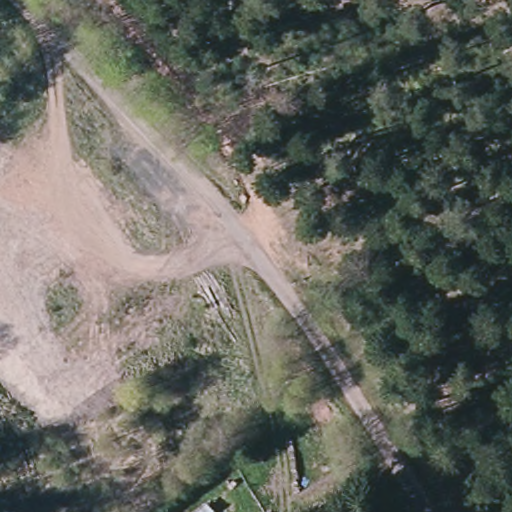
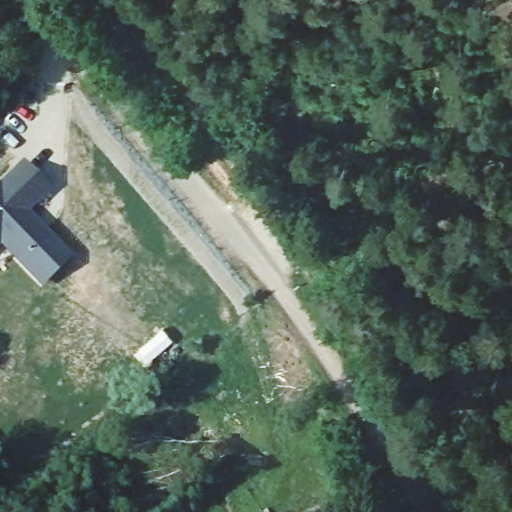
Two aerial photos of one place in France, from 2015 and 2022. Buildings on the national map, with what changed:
new [(23,166),(47,191),(25,213),(36,224),(45,233),(69,258),(41,285),(0,242),(0,189),(23,166)]

